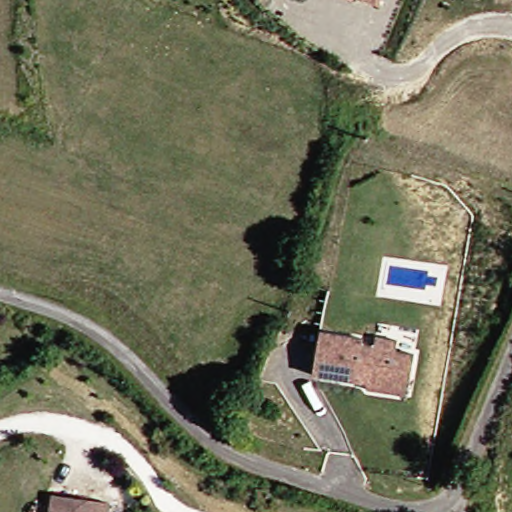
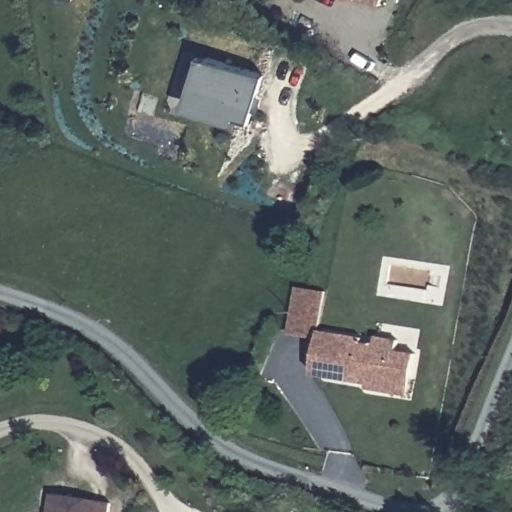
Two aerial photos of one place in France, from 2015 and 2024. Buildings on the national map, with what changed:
unchanged [(349,0),(356,0),(354,3),(349,0)]
unchanged [(363,0),(382,0),(379,6),(363,0)]
new [(249,123),(238,119),(236,125),(183,110),(199,56),(264,75),(249,123)]
new [(318,339),(288,334),(296,287),(326,293),(318,339)]
unchanged [(401,393),(376,389),(377,383),(366,381),(324,374),(333,331),(371,338),(371,342),(384,345),(386,336),(407,340),(405,351),(423,355),(419,378),(417,395),(401,393)]
unchanged [(96,502),(95,512),(36,512),(38,494),(96,502)]

